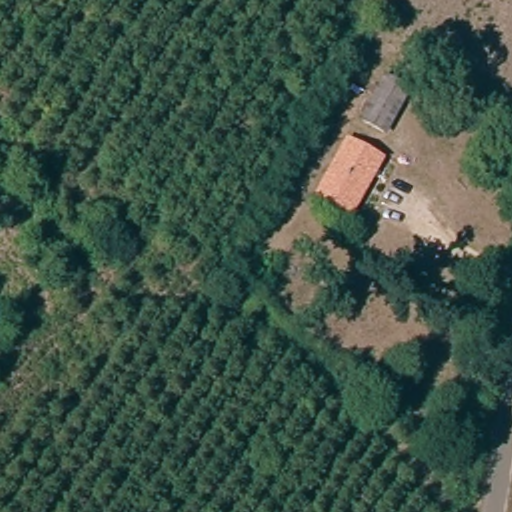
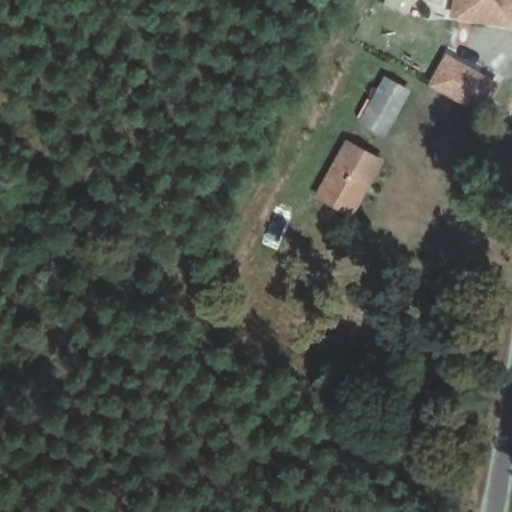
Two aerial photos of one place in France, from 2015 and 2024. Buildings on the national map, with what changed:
new [(475,19),(453,15),(456,0),(512,0),(512,24),(475,19)]
new [(480,112),(466,105),(431,85),(447,57),(482,76),(496,84),(480,112)]
unchanged [(376,96),(385,79),(408,91),(385,134),(362,121),(376,96)]
unchanged [(385,160),(355,214),(323,196),(355,142),(385,160)]

